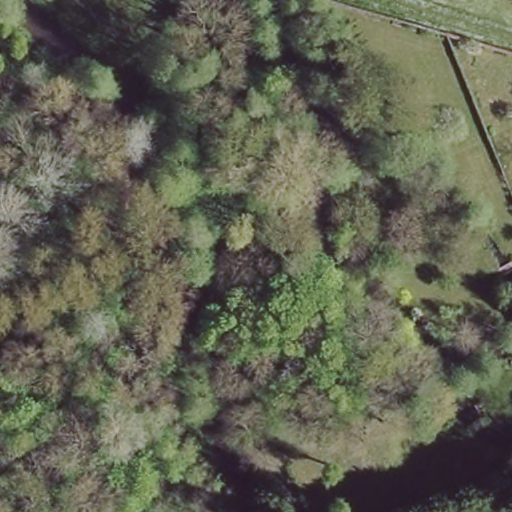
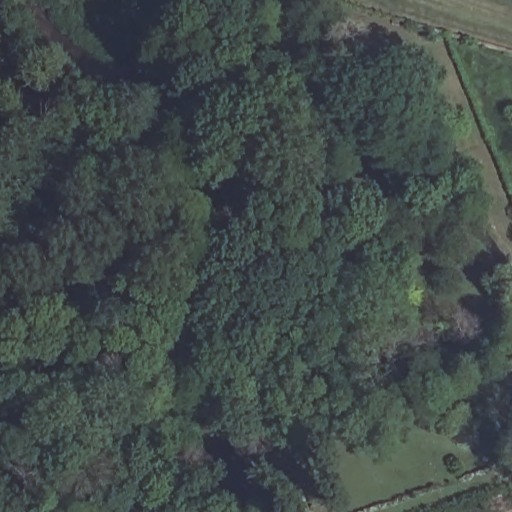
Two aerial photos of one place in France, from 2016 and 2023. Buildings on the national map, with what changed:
unchanged [(330,5),(327,6),(310,12),(306,0),(328,0),(330,5)]

